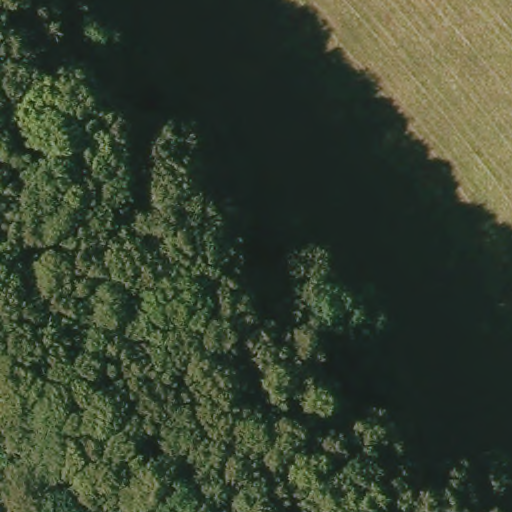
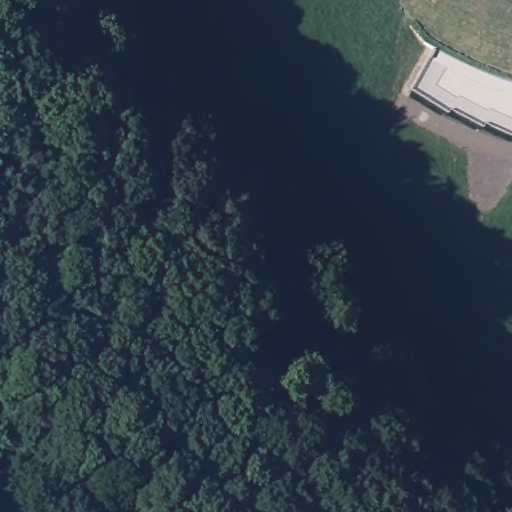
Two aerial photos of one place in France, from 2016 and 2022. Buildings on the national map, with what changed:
new [(512,80),(512,132),(482,118),(481,122),(448,104),(447,107),(413,85),(433,45),(456,57),(476,67),(512,80)]

